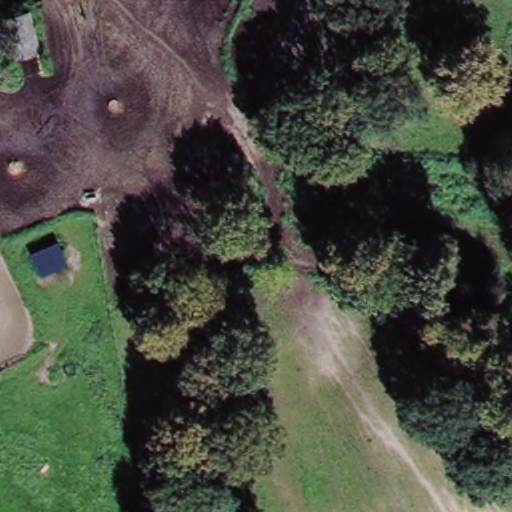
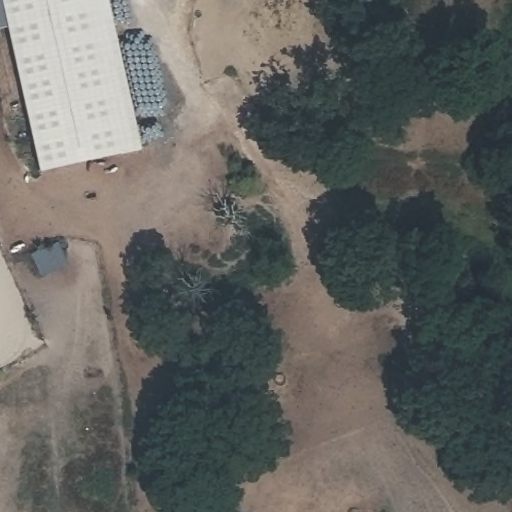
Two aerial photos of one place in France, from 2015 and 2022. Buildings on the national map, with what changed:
new [(38,173),(1,0),(107,0),(140,151),(38,173)]
demolished [(31,10),(46,77),(15,85),(4,20),(31,10)]
new [(67,267),(41,279),(32,258),(57,246),(67,267)]

